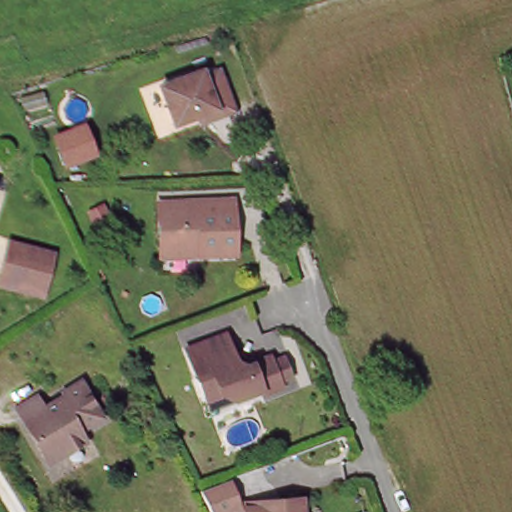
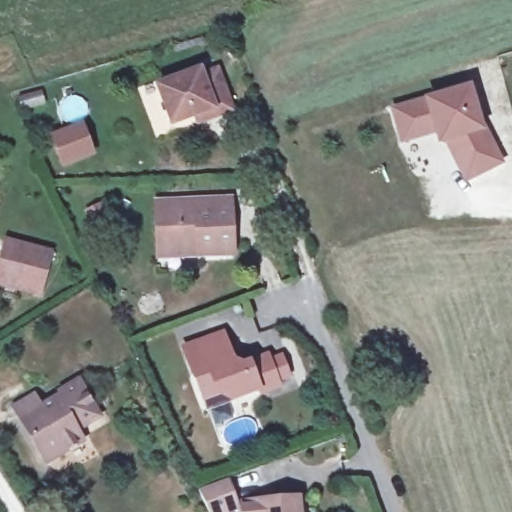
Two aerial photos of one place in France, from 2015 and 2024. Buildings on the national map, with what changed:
unchanged [(187,119),(166,127),(152,90),(195,72),(197,78),(210,73),(227,112),(212,118),(190,127),(187,119)]
new [(464,182),(441,145),(435,146),(431,134),(397,146),(385,107),(421,96),(470,83),(488,132),(483,133),(503,163),(464,182)]
unchanged [(76,125),(85,151),(60,160),(51,134),(76,125)]
unchanged [(203,256),(202,262),(200,262),(156,263),(156,250),(155,206),(218,206),(214,217),(211,225),(221,209),(223,237),(224,255),(203,256)]
unchanged [(0,280),(0,274),(3,257),(8,239),(16,241),(55,249),(50,269),(45,290),(0,280)]
unchanged [(279,377),(266,383),(268,388),(251,396),(248,390),(223,400),(210,394),(196,400),(186,379),(197,373),(188,350),(187,350),(187,349),(188,345),(211,336),(225,365),(236,366),(256,359),(258,364),(271,359),(279,377)]
unchanged [(101,425),(43,460),(15,414),(73,379),(101,425)]
unchanged [(237,512),(206,512),(198,496),(226,485),(237,512)]
unchanged [(301,499),(302,512),(244,512),(243,503),(301,499)]

